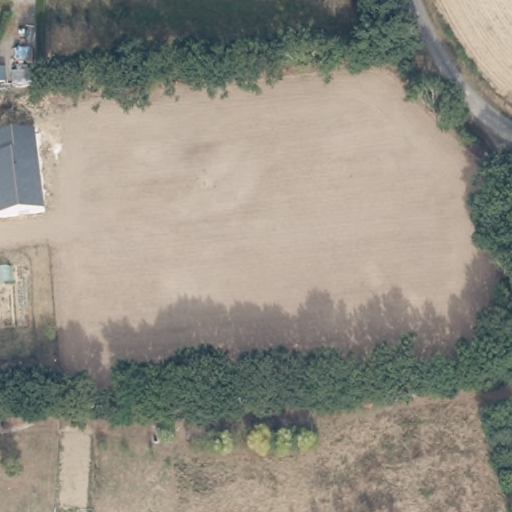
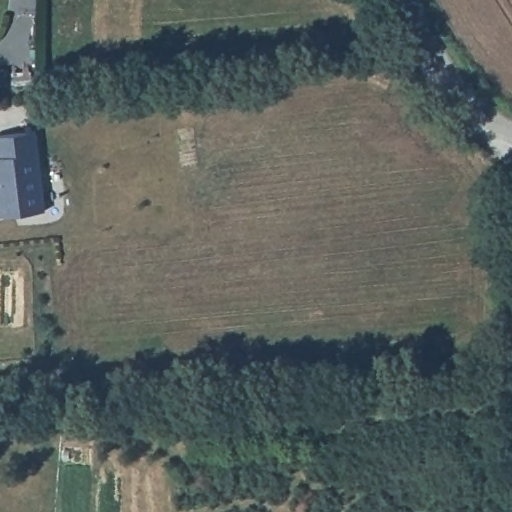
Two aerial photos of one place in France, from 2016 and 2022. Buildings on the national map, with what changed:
unchanged [(0,134),(35,130),(42,208),(0,214),(0,134)]

